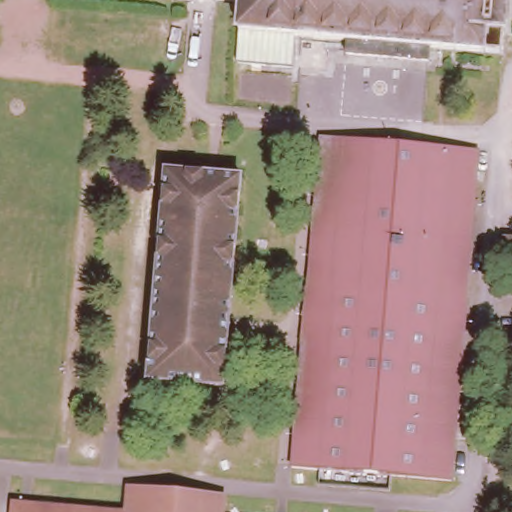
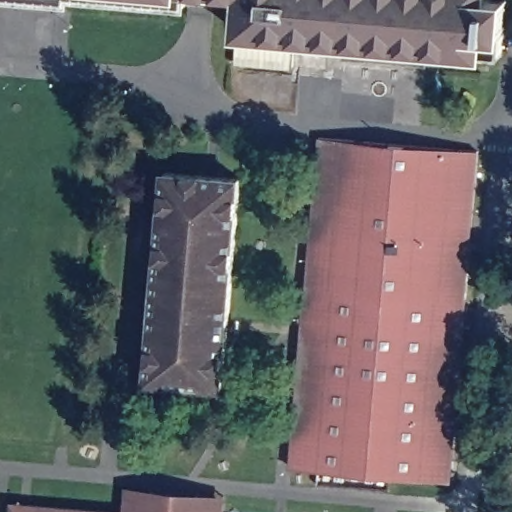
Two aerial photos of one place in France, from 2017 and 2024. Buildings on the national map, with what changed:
unchanged [(425,43),(423,56),(340,48),(341,36),(290,32),(287,63),(230,58),(233,27),(236,0),(501,0),(497,50),(425,43)]
unchanged [(478,150),(472,212),(469,239),(446,477),(286,463),(290,424),(296,355),(317,134),(478,150)]
unchanged [(238,176),(219,386),(142,380),(161,170),(238,176)]
unchanged [(12,500),(123,510),(125,485),(230,494),(228,512),(11,512),(12,500)]

